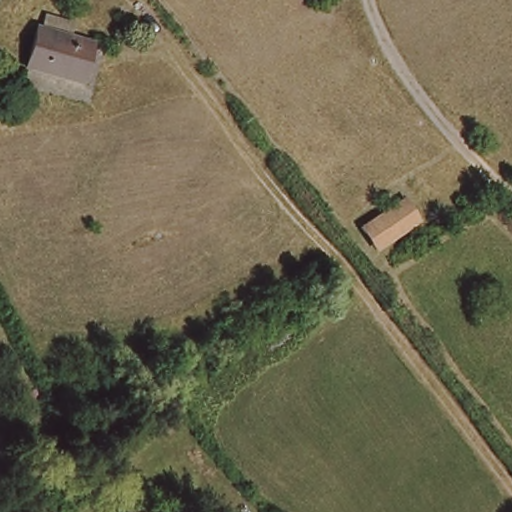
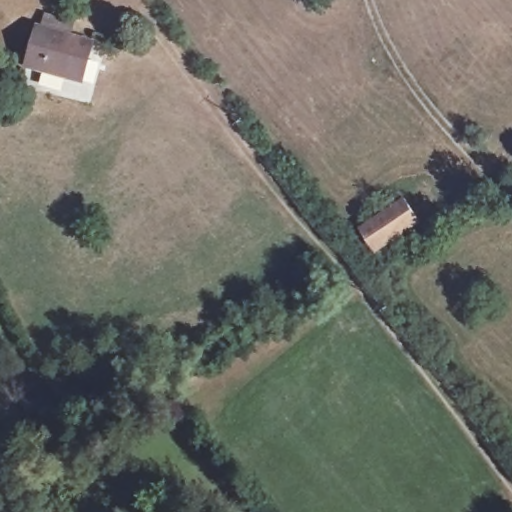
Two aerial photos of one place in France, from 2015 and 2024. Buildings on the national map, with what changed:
unchanged [(72,80),(47,73),(26,67),(31,50),(38,28),(41,29),(45,15),(74,23),(70,37),(93,43),(88,61),(81,82),(72,80)]
unchanged [(376,248),(361,227),(406,198),(419,220),(376,248)]

